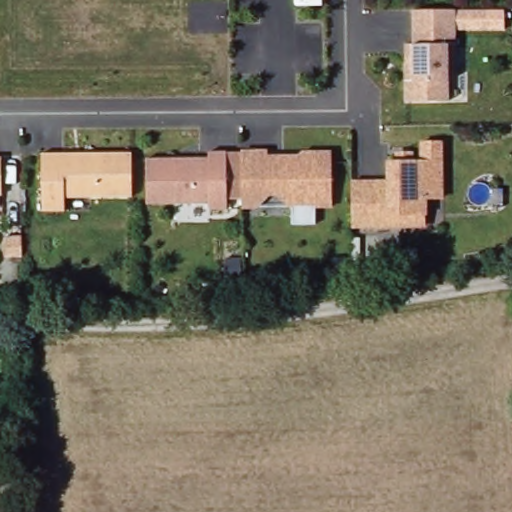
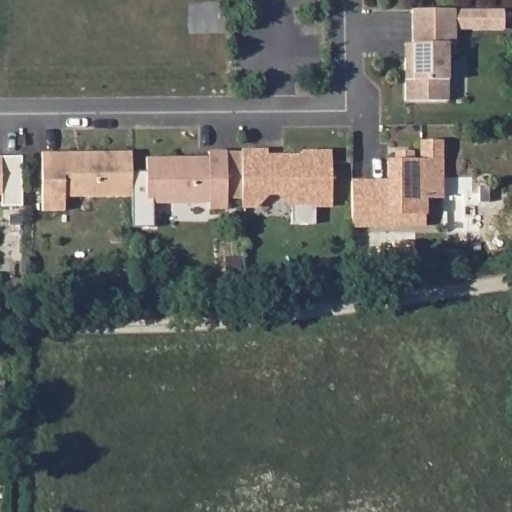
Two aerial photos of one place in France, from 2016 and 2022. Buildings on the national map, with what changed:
unchanged [(456,9),(456,54),(448,61),(449,100),(406,101),(406,58),(406,44),(413,44),(413,10),(456,9)]
unchanged [(396,221),(353,221),(353,197),(353,176),(389,176),(389,156),(423,155),(423,136),(443,136),(443,192),(426,192),(427,208),(427,220),(396,221)]
unchanged [(279,191),(269,191),(257,204),(243,204),(243,168),(242,146),(269,146),(269,151),(282,151),(286,155),(296,155),(304,148),(333,147),(333,203),(292,204),(279,191)]
unchanged [(146,158),(209,158),(209,151),(227,151),(228,209),(210,209),(210,203),(148,204),(146,158)]
unchanged [(43,153),(132,152),(133,197),(65,197),(65,210),(43,211),(43,153)]
unchanged [(0,157),(3,156),(3,195),(0,195),(0,157)]
unchanged [(3,229),(23,229),(23,250),(24,254),(4,254),(3,229)]

